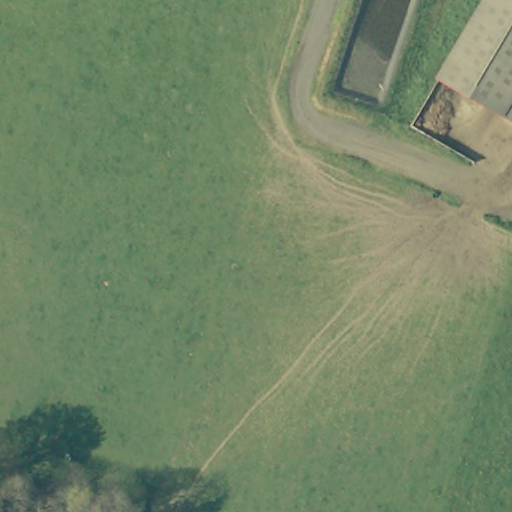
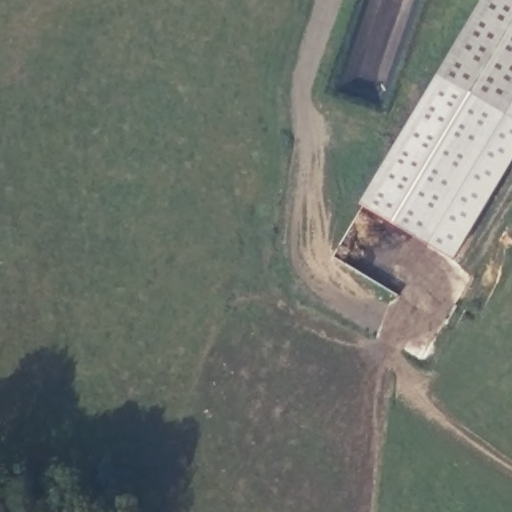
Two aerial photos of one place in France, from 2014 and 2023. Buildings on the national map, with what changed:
unchanged [(512,122),(438,76),(484,0),(512,0),(512,122)]
new [(512,162),(453,260),(362,205),(438,76),(512,122),(512,162)]

